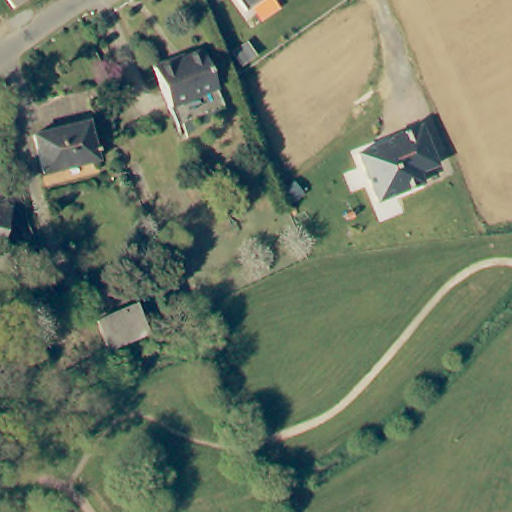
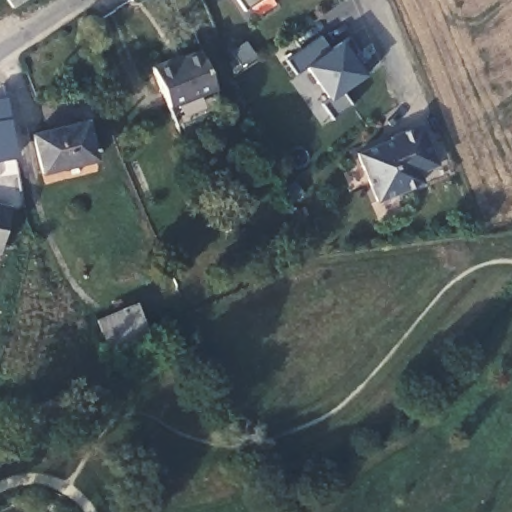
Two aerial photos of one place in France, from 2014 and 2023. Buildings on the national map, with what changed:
unchanged [(32,0),(34,3),(18,13),(12,4),(18,0),(32,0)]
unchanged [(260,23),(249,9),(247,11),(240,0),(273,0),(279,9),(260,23)]
new [(330,48),(349,39),(371,70),(366,78),(342,93),(351,106),(350,106),(333,119),(323,104),(329,101),(305,68),(296,74),(287,61),(321,36),(330,48)]
unchanged [(211,90),(165,105),(150,65),(167,58),(169,61),(198,51),(211,90)]
unchanged [(34,134),(88,122),(96,160),(43,172),(34,134)]
unchanged [(440,175),(422,183),(426,193),(381,212),(361,164),(387,153),(388,156),(394,158),(398,156),(394,148),(424,135),(440,175)]
unchanged [(7,207),(0,237),(0,205),(7,207)]
unchanged [(136,300),(155,325),(113,353),(96,329),(136,300)]

